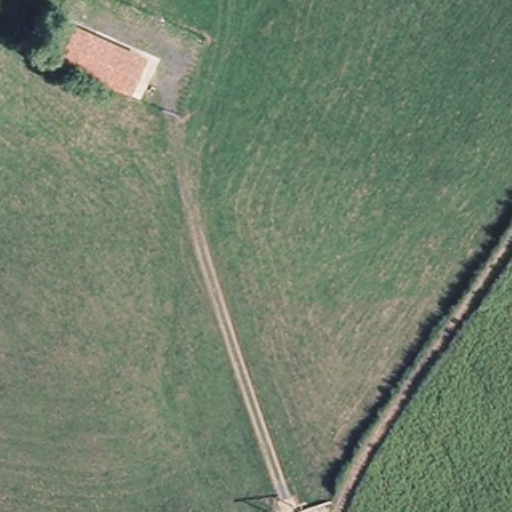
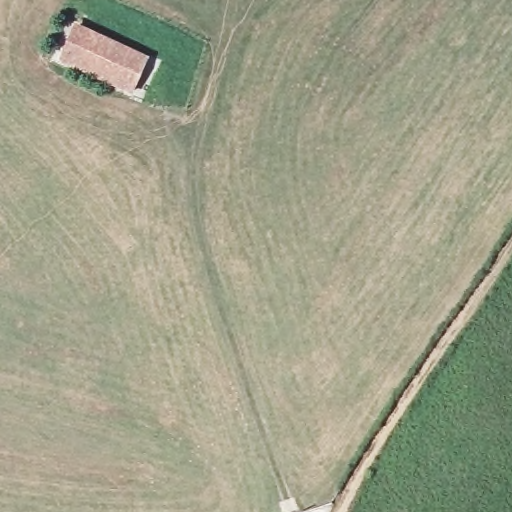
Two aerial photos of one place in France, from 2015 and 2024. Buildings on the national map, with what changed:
unchanged [(50,58),(67,20),(167,63),(147,104),(50,58)]

